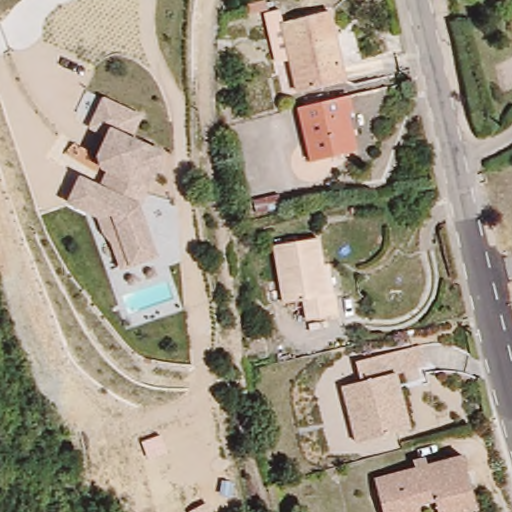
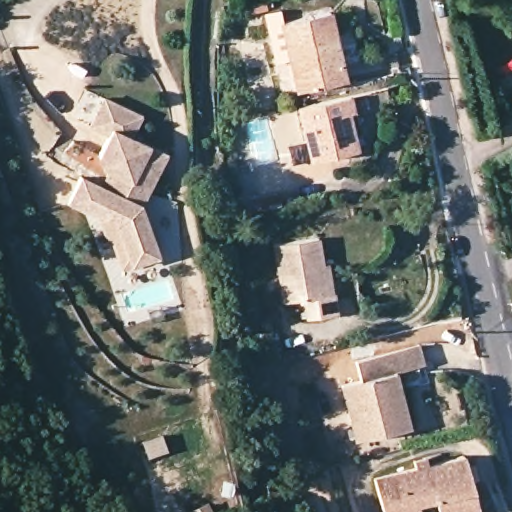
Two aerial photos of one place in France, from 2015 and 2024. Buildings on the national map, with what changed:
unchanged [(291,58),(271,63),(260,12),(280,7),(284,21),(291,58)]
unchanged [(298,90),(291,58),(284,21),(332,10),(339,39),(332,41),(336,56),(343,55),(348,76),(298,90)]
unchanged [(80,169),(98,177),(103,167),(94,160),(105,135),(89,128),(105,94),(145,112),(135,137),(165,153),(140,202),(143,207),(160,257),(124,267),(112,221),(67,202),(80,169)]
unchanged [(342,116),(352,153),(306,165),(296,123),(320,117),(316,104),(346,98),(350,115),(342,116)]
unchanged [(300,303),(281,305),(271,243),(317,235),(327,293),(337,292),(341,316),(302,321),(300,303)]
unchanged [(351,382),(421,363),(427,385),(401,392),(416,445),(362,461),(347,408),(357,405),(351,382)]
unchanged [(369,478),(461,452),(478,507),(464,512),(435,512),(432,504),(398,512),(379,512),(369,478)]

